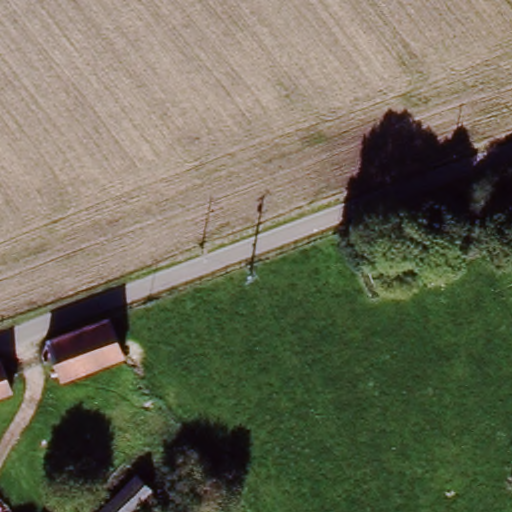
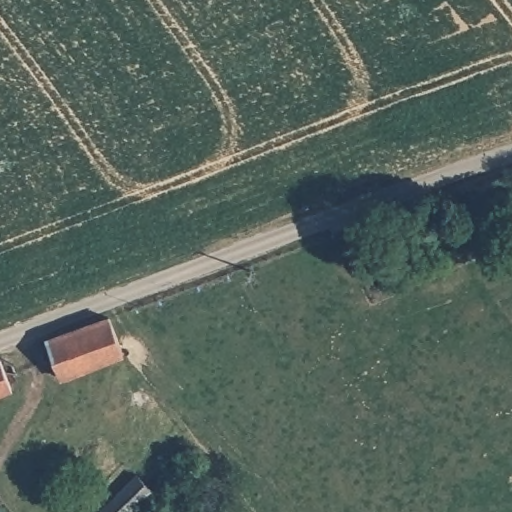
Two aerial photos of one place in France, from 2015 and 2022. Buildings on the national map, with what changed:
unchanged [(123,346),(58,370),(47,338),(110,315),(123,346)]
unchanged [(0,395),(0,360),(12,390),(0,395)]
unchanged [(154,487),(131,512),(95,512),(135,471),(154,487)]

